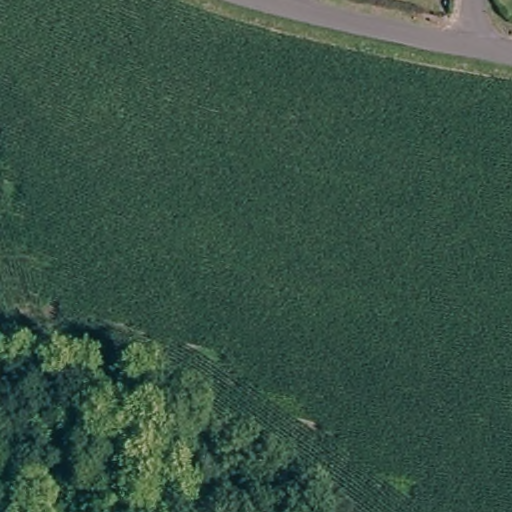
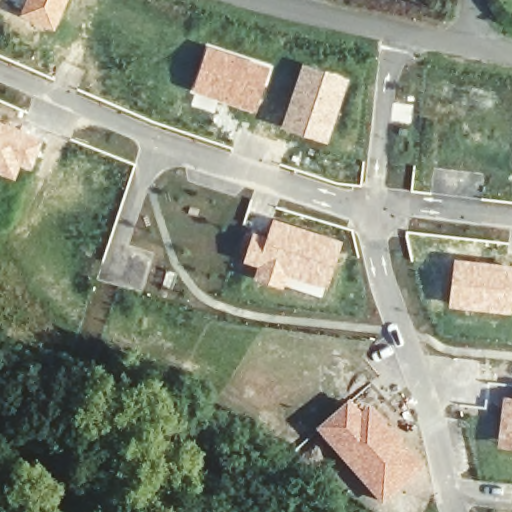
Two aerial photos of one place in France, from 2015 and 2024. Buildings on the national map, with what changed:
new [(20,16),(27,0),(68,0),(55,31),(20,16)]
new [(207,47),(270,68),(256,112),(192,91),(207,47)]
new [(303,64),(350,79),(327,143),(281,127),(303,64)]
new [(43,140),(32,170),(21,166),(15,180),(0,174),(0,122),(43,140)]
new [(267,236),(273,219),(343,241),(328,288),(288,276),(283,289),(254,280),(258,267),(243,262),(253,232),(267,236)]
new [(512,265),(512,314),(449,307),(454,258),(512,265)]
new [(512,397),(512,450),(498,448),(504,396),(512,397)]
new [(350,401),(362,414),(370,407),(390,431),(393,429),(403,441),(401,442),(424,470),(382,507),(315,431),(350,401)]

